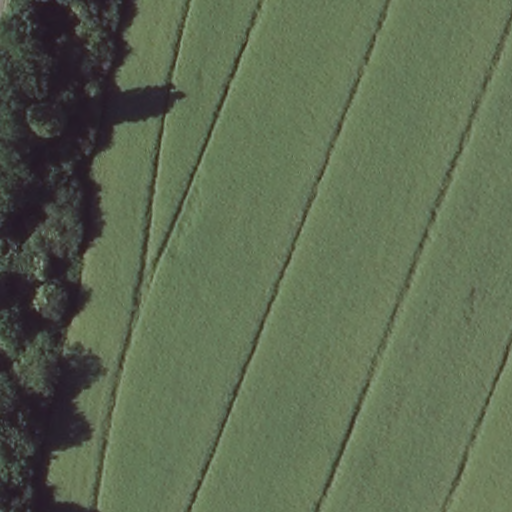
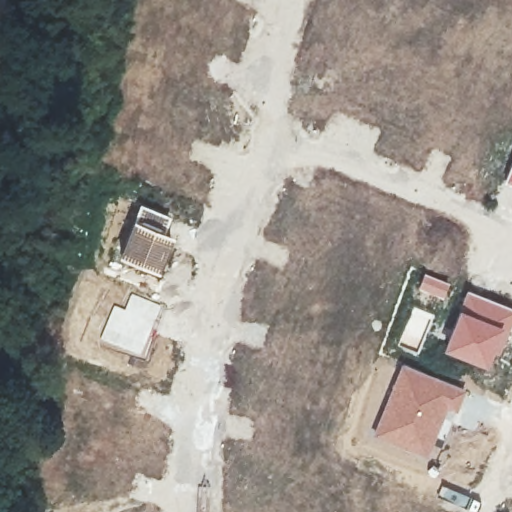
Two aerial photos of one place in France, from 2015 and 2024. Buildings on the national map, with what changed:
new [(512,160),(512,186),(503,182),(512,160)]
new [(140,203),(172,215),(165,231),(175,235),(160,273),(118,257),(140,203)]
new [(466,290),(512,308),(512,320),(489,369),(442,350),(466,290)]
new [(114,302),(124,306),(131,291),(162,304),(143,356),(99,340),(114,302)]
new [(403,363),(468,390),(445,441),(438,438),(429,459),(372,436),(403,363)]

